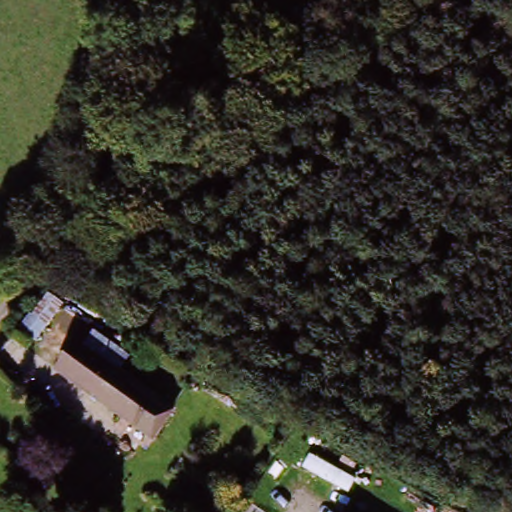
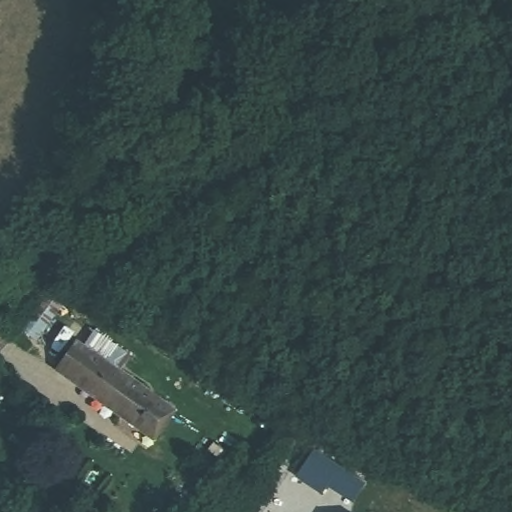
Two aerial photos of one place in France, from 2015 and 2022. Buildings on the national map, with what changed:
unchanged [(186,408),(168,438),(56,366),(75,337),(186,408)]

